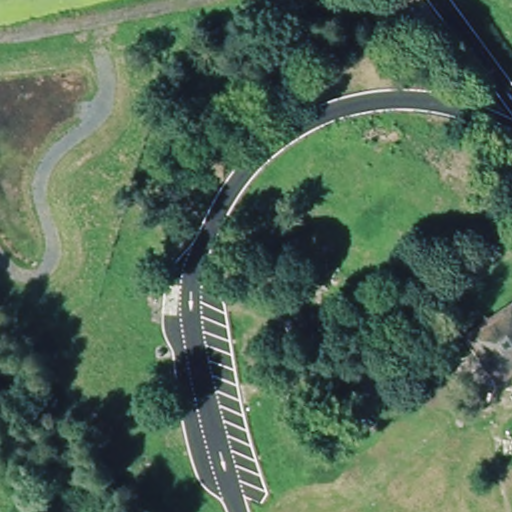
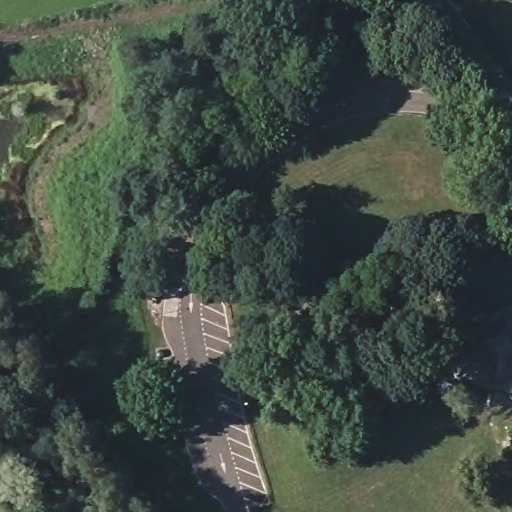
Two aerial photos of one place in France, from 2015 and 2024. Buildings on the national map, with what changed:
unchanged [(512,307),(512,375),(501,383),(468,335),(512,307)]

